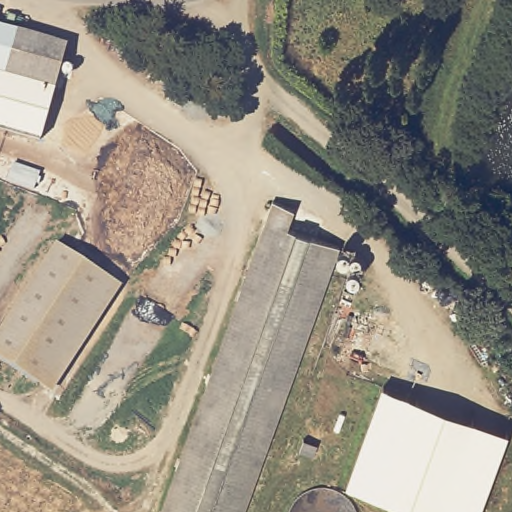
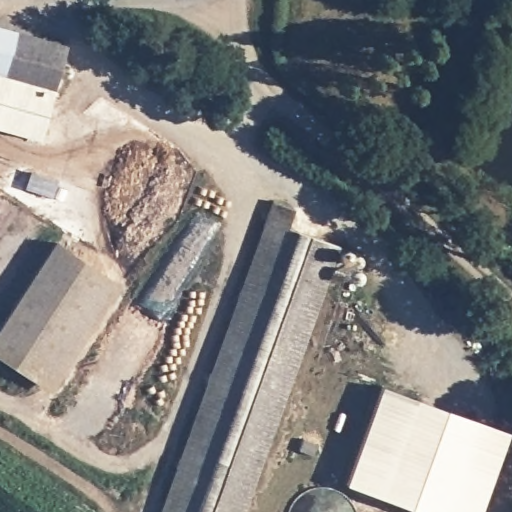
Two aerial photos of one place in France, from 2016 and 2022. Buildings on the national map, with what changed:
unchanged [(39,142),(0,131),(0,29),(64,48),(39,142)]
unchanged [(287,228),(340,251),(245,512),(161,512),(275,202),(294,211),(287,228)]
unchanged [(0,359),(0,337),(60,245),(113,279),(41,386),(0,359)]
unchanged [(347,488),(382,394),(416,407),(382,501),(347,488)]
unchanged [(441,512),(413,512),(382,501),(416,407),(472,428),(441,512)]
unchanged [(479,512),(441,512),(472,428),(506,439),(479,512)]

